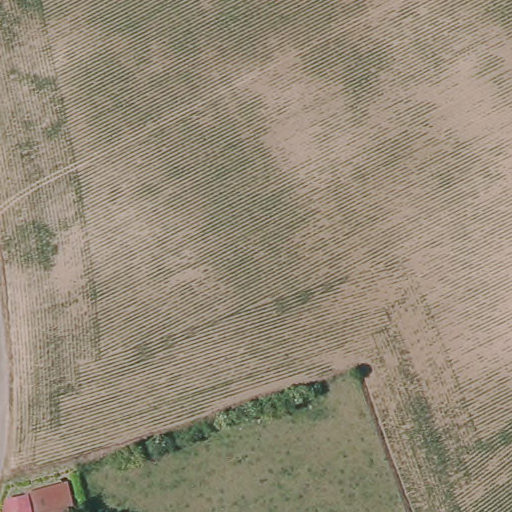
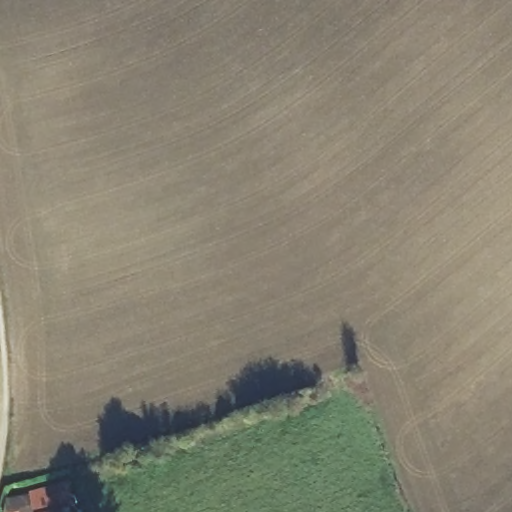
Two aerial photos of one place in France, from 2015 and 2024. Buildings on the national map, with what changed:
unchanged [(15,498),(68,484),(73,507),(70,508),(53,512),(18,512),(15,498)]
unchanged [(70,508),(70,512),(53,512),(70,508)]

